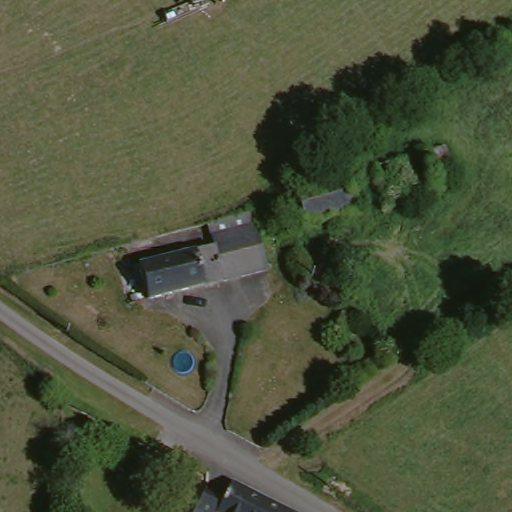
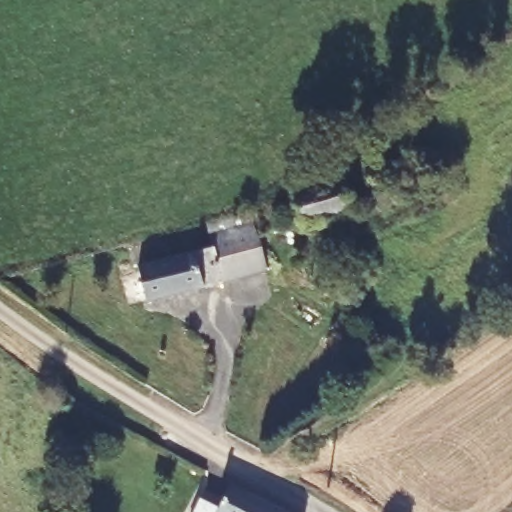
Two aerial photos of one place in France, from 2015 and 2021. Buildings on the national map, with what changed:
unchanged [(304,226),(296,193),(348,180),(356,214),(304,226)]
unchanged [(135,267),(144,265),(206,249),(203,236),(202,230),(201,225),(245,214),(251,213),(254,237),(250,238),(260,278),(145,307),(135,267)]
unchanged [(270,512),(194,512),(199,501),(219,510),(227,492),(270,512)]

